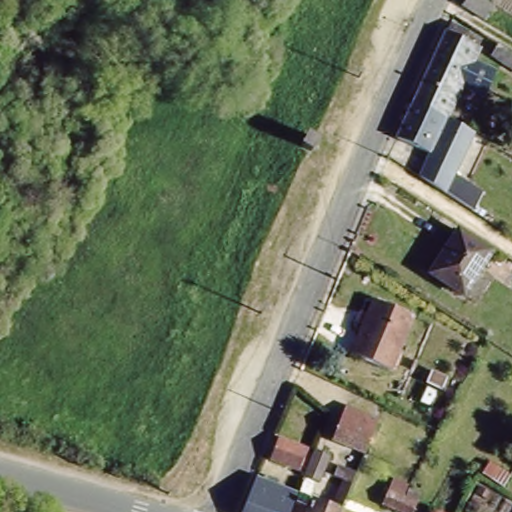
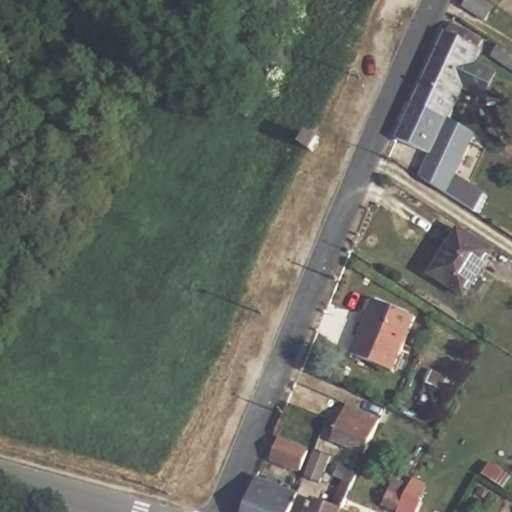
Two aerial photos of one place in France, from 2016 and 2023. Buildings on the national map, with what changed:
unchanged [(472,62),(463,82),(457,96),(419,76),(441,25),(478,48),(512,69),(512,87),(472,62)]
unchanged [(457,96),(447,120),(444,126),(405,109),(419,76),(457,96)]
unchanged [(430,157),(427,156),(391,139),(405,109),(444,126),(430,157)]
unchanged [(472,134),(447,195),(418,177),(427,156),(430,157),(444,126),(447,120),(472,134)]
unchanged [(470,292),(431,267),(455,229),(494,254),(470,292)]
unchanged [(392,367),(367,354),(350,345),(370,304),(390,315),(412,326),(392,367)]
unchanged [(346,454),(317,441),(332,415),(362,427),(346,454)]
unchanged [(281,438),(303,447),(292,471),(270,462),(281,438)]
unchanged [(258,484),(298,496),(289,512),(244,512),(258,484)]
unchanged [(388,509),(397,494),(410,503),(405,512),(392,512),(388,509)]
unchanged [(344,510),(343,512),(289,512),(298,496),(344,510)]
unchanged [(344,510),(349,512),(343,512),(344,510)]

